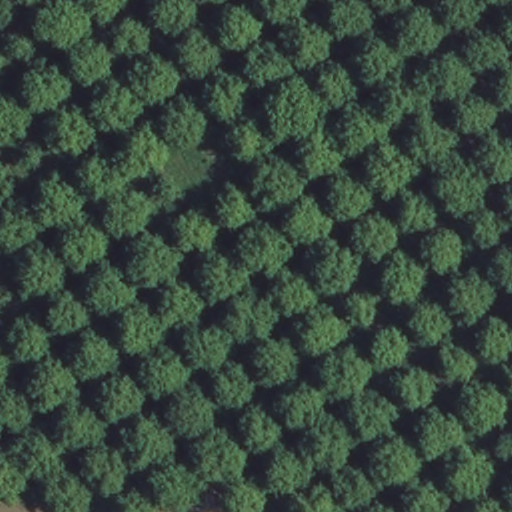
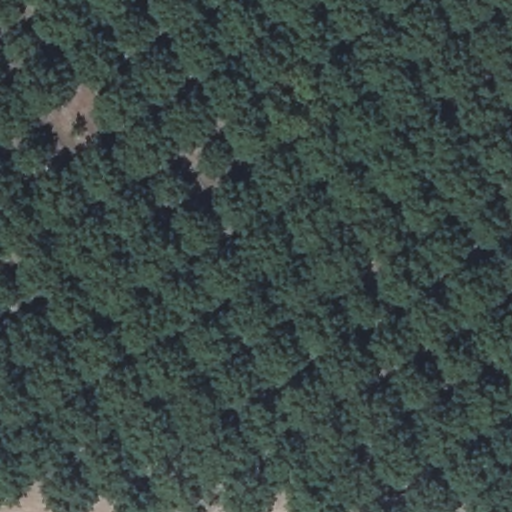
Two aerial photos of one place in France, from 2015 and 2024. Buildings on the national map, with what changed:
[]

